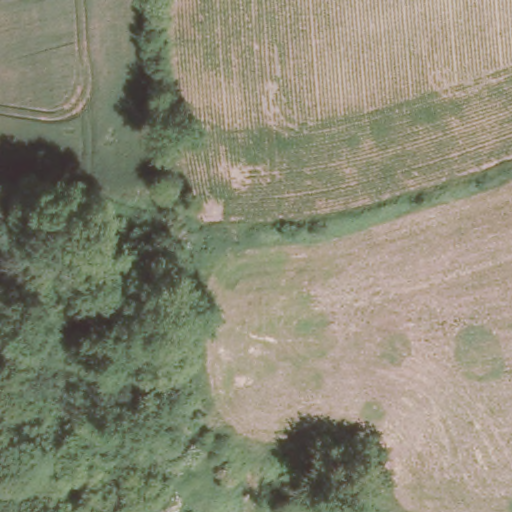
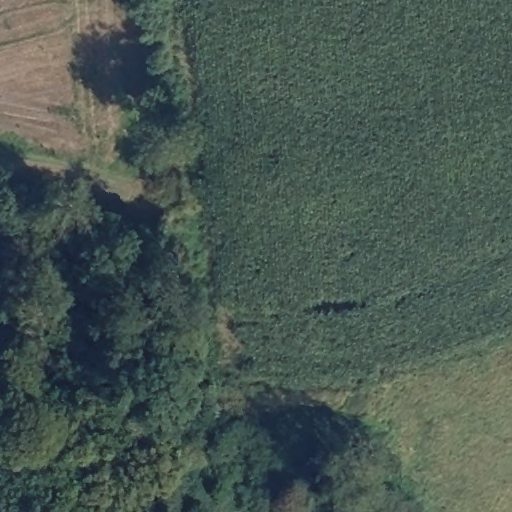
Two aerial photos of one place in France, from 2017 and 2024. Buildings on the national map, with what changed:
[]

